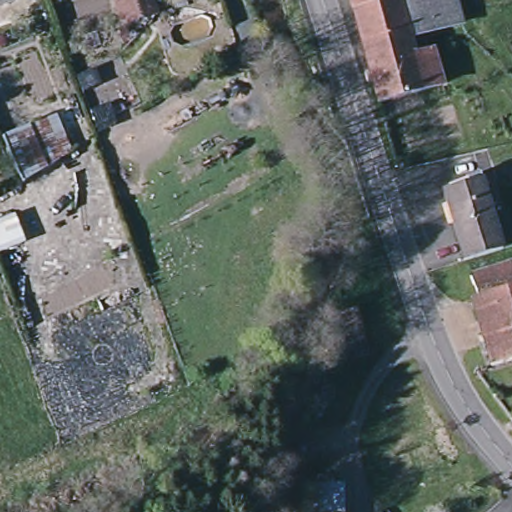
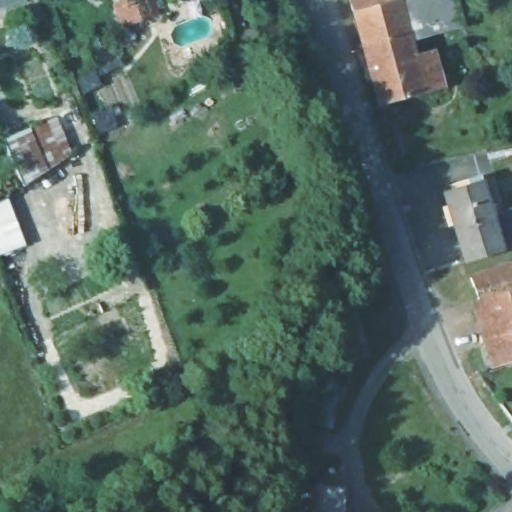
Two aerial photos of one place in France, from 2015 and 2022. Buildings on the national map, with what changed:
unchanged [(149,0),(152,11),(132,17),(127,0),(149,0)]
unchanged [(353,13),(350,0),(397,0),(397,1),(353,13)]
unchanged [(408,39),(397,1),(397,0),(456,0),(462,23),(408,39)]
unchanged [(397,1),(408,39),(412,55),(432,50),(442,85),(378,103),(353,13),(397,1)]
unchanged [(47,168),(22,185),(0,142),(0,136),(62,111),(78,147),(47,168)]
unchanged [(482,180),(503,249),(465,261),(444,192),(482,180)]
unchanged [(24,246),(0,255),(0,223),(14,219),(24,246)]
unchanged [(512,264),(512,287),(479,298),(472,277),(512,264)]
unchanged [(479,298),(512,287),(512,360),(493,366),(486,343),(472,300),(479,298)]
unchanged [(352,300),(365,345),(342,351),(337,337),(334,338),(326,307),(352,300)]
unchanged [(342,487),(342,512),(314,512),(314,489),(342,487)]

